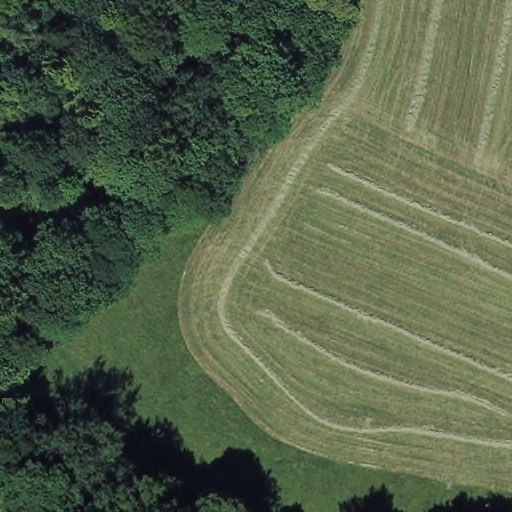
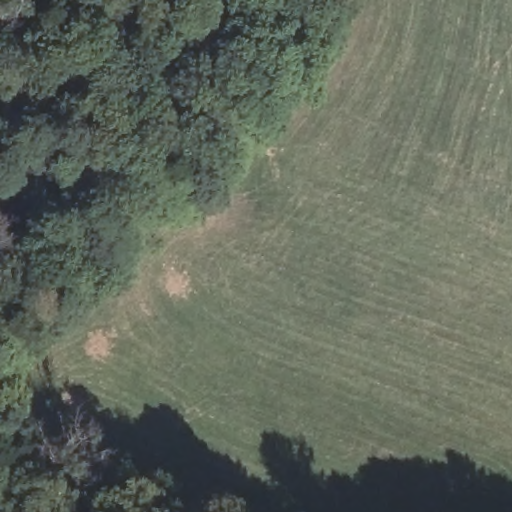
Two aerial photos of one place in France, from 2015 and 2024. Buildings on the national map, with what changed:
[]

